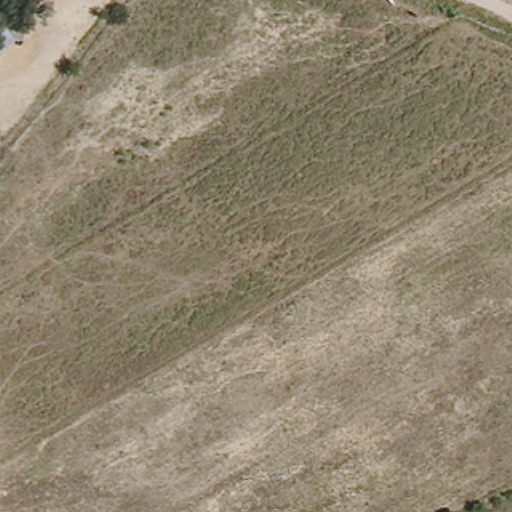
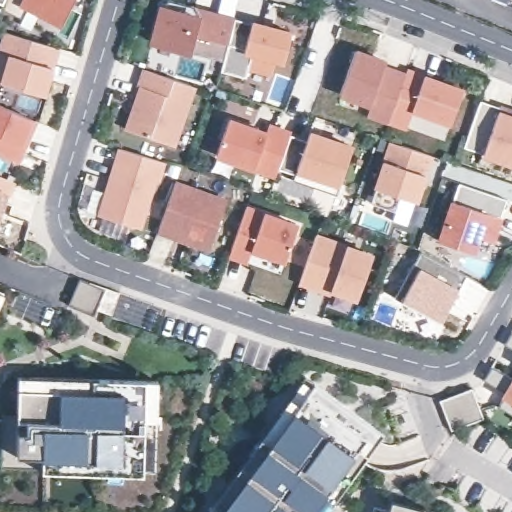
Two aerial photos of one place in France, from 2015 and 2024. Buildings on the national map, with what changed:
new [(3,5),(0,4),(0,0),(5,0),(3,5)]
new [(5,0),(70,0),(59,22),(26,6),(20,18),(1,9),(3,5),(5,0)]
new [(168,0),(171,0),(195,7),(196,9),(217,14),(235,19),(224,61),(152,42),(162,4),(168,0)]
new [(224,61),(235,19),(236,19),(291,34),(284,62),(275,60),(272,74),(248,67),(245,78),(222,72),(224,61)]
new [(0,83),(0,80),(8,55),(0,53),(0,46),(5,32),(59,47),(54,70),(45,96),(0,83)]
new [(392,116),(390,121),(365,120),(369,109),(338,99),(354,50),(385,60),(384,66),(410,72),(392,116)]
new [(141,88),(139,87),(145,69),(194,86),(173,146),(127,130),(141,88)]
new [(410,72),(462,90),(450,124),(413,110),(406,127),(390,121),(410,72)]
new [(512,112),(512,164),(465,147),(481,101),(512,112)]
new [(35,120),(17,161),(0,154),(0,105),(35,120)]
new [(279,169),(276,176),(216,155),(229,120),(266,133),(269,126),(291,134),(291,135),(279,169)]
new [(310,185),(294,180),(296,175),(279,169),(291,135),(307,140),(309,133),(352,147),(340,185),(336,195),(310,185)]
new [(392,142),(430,155),(415,202),(400,197),(395,211),(370,204),(392,142)]
new [(125,152),(168,165),(162,184),(159,183),(144,232),(105,220),(125,152)]
new [(12,180),(8,193),(0,213),(0,176),(12,180)]
new [(459,183),(506,199),(492,242),(477,237),(472,252),(440,241),(459,183)]
new [(175,184),(227,201),(210,250),(159,231),(175,184)]
new [(246,209),(297,226),(285,260),(252,249),(248,261),(230,255),(246,209)]
new [(314,293),(299,287),(317,236),(372,255),(357,299),(331,290),(329,298),(314,293)]
new [(426,254),(472,278),(447,326),(400,301),(426,254)]
new [(122,294),(112,317),(97,309),(94,316),(70,306),(80,280),(122,294)]
new [(5,292),(0,303),(0,290),(5,292)]
new [(512,335),(512,350),(505,345),(512,335)]
new [(497,398),(504,388),(485,377),(492,365),(512,377),(512,415),(495,405),(497,398)]
new [(155,430),(143,430),(144,477),(41,475),(42,454),(17,455),(18,431),(18,378),(92,380),(145,380),(146,384),(156,383),(155,430)]
new [(261,439),(306,378),(315,385),(374,427),(311,512),(207,512),(218,497),(249,455),(261,439)]
new [(472,388),(484,418),(451,430),(440,401),(472,388)]
new [(383,434),(325,512),(311,512),(374,427),(383,434)]
new [(392,512),(373,512),(374,507),(392,512)]

